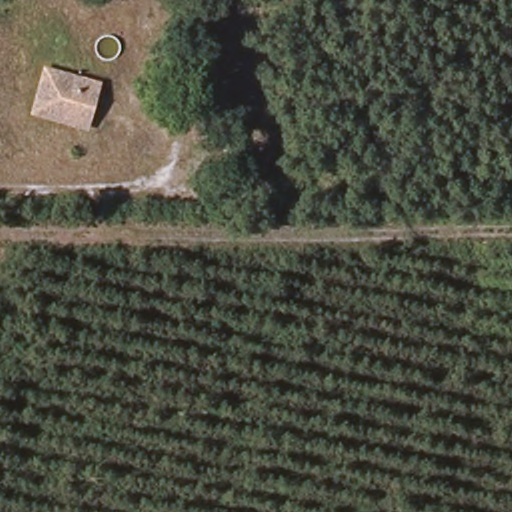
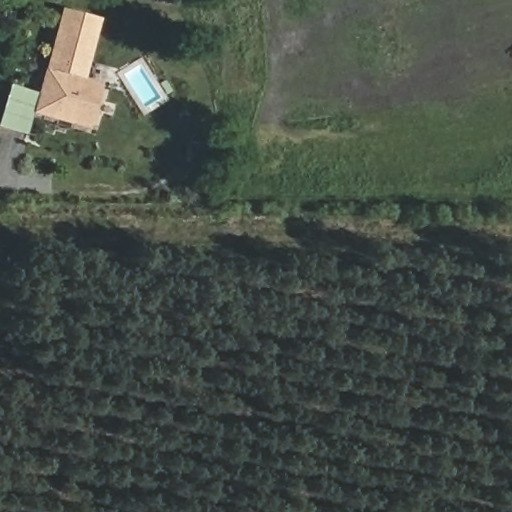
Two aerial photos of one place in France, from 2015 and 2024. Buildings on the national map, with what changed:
new [(61,7),(101,18),(86,74),(46,62),(61,7)]
unchanged [(91,135),(28,117),(43,61),(106,80),(91,135)]

